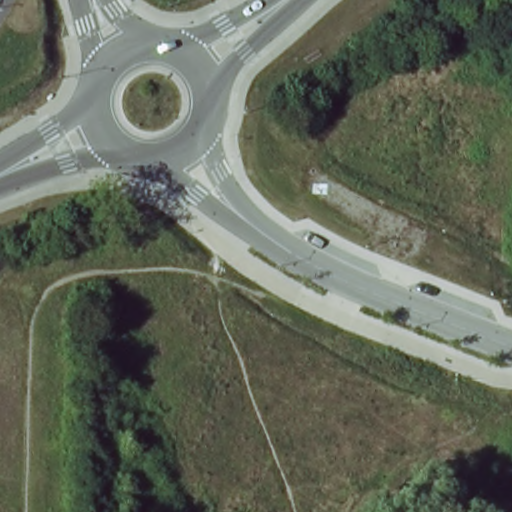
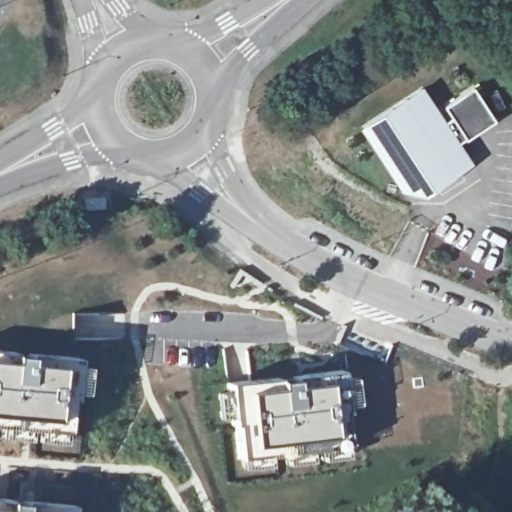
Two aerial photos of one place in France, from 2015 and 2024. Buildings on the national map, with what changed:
new [(422,86),(445,121),(452,117),(444,106),(473,87),(495,121),(460,142),(473,164),(426,194),(402,190),(359,126),(422,86)]
new [(65,432),(0,426),(0,351),(72,358),(65,432)]
new [(340,371),(344,410),(340,412),(345,443),(238,459),(236,427),(232,427),(227,383),(340,371)]
new [(68,512),(0,512),(0,499),(69,505),(68,512)]

